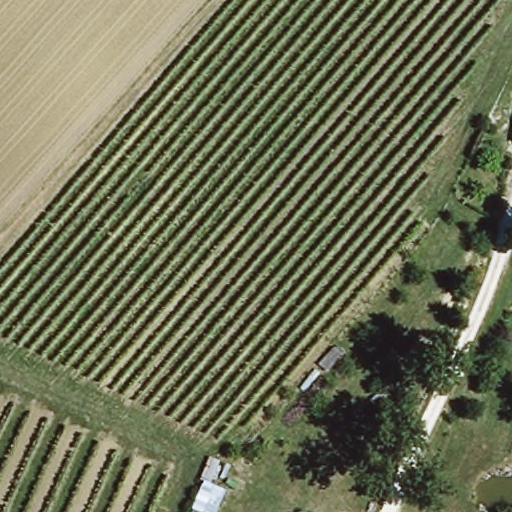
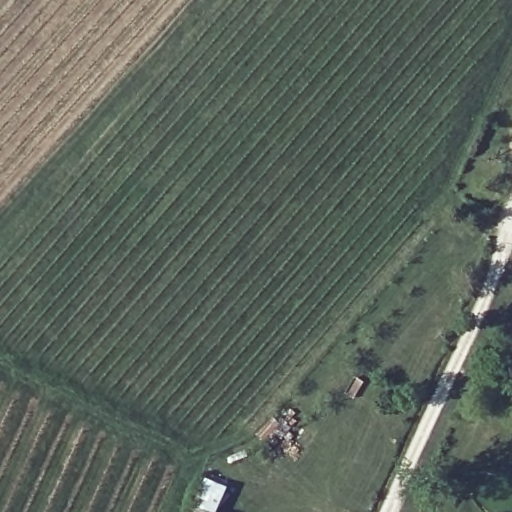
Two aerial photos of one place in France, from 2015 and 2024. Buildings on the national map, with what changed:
unchanged [(201,468),(223,478),(209,512),(184,512),(201,468)]

